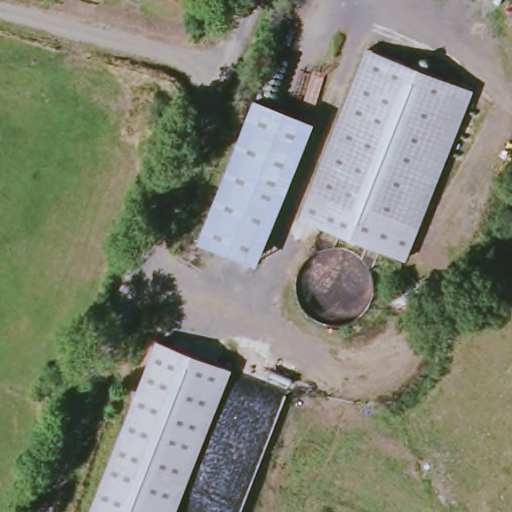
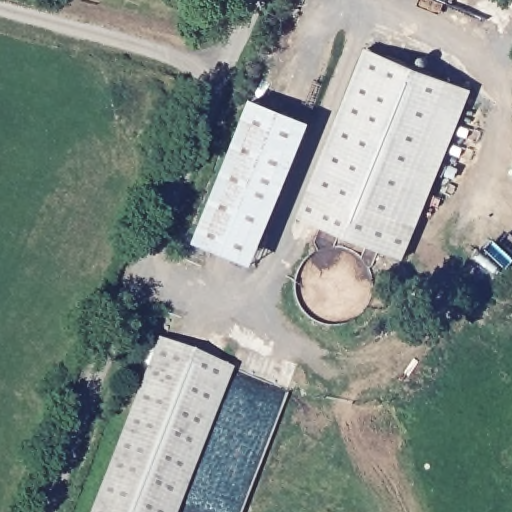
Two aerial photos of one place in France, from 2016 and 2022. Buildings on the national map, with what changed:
unchanged [(362,62),(467,103),(410,243),(307,201),(362,62)]
unchanged [(310,123),(255,265),(198,243),(253,101),(310,123)]
unchanged [(175,512),(91,512),(158,341),(231,370),(175,512)]

